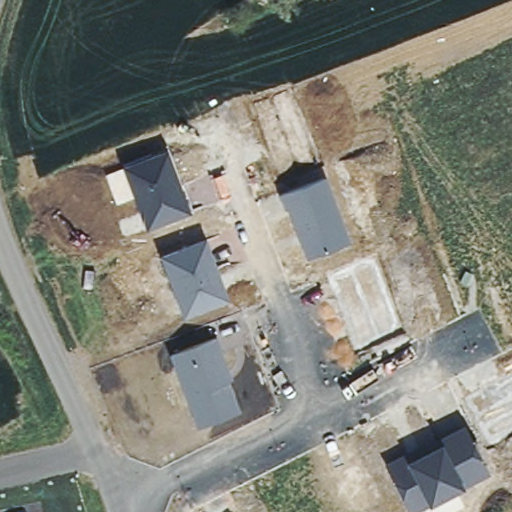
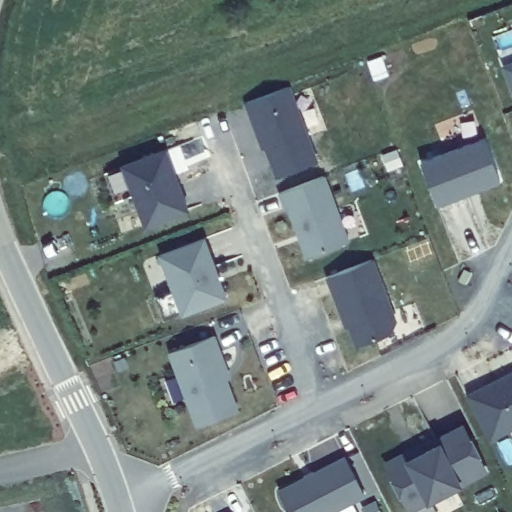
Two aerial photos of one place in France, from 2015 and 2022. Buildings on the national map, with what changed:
new [(501,65),(512,61),(512,94),(501,65)]
new [(307,130),(319,162),(275,179),(264,149),(261,150),(244,104),(290,86),(307,130)]
new [(501,183),(438,206),(420,162),(484,138),(501,183)]
unchanged [(190,210),(147,226),(120,159),(164,143),(190,210)]
unchanged [(351,241),(306,257),(281,191),(327,174),(351,241)]
unchanged [(227,297),(182,313),(161,252),(205,237),(227,297)]
new [(398,320),(392,334),(355,348),(348,326),(344,327),(326,277),(374,258),(398,320)]
unchanged [(240,408),(197,425),(169,352),(214,334),(240,408)]
new [(490,441),(466,395),(512,372),(512,430),(490,441)]
unchanged [(462,487),(429,503),(409,512),(382,461),(402,451),(406,459),(441,440),(439,435),(465,421),(490,470),(462,487)]
new [(336,512),(287,512),(277,490),(344,456),(366,496),(336,512)]

